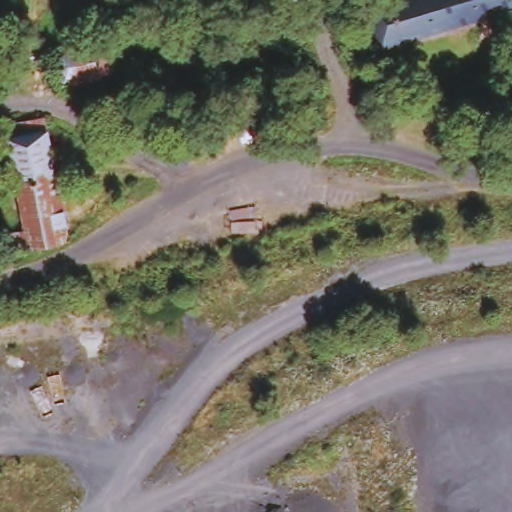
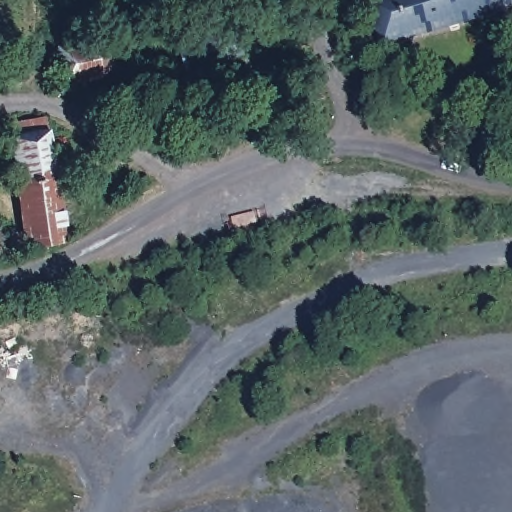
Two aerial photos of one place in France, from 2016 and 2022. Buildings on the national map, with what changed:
unchanged [(373,8),(392,0),(512,0),(512,16),(386,52),(373,8)]
unchanged [(240,32),(246,53),(185,70),(178,49),(240,32)]
unchanged [(69,79),(64,59),(107,50),(108,54),(122,50),(127,71),(111,75),(111,78),(69,79)]
unchanged [(24,186),(13,138),(53,128),(64,177),(24,186)]
unchanged [(77,243),(22,255),(17,238),(33,234),(24,186),(64,177),(77,243)]

